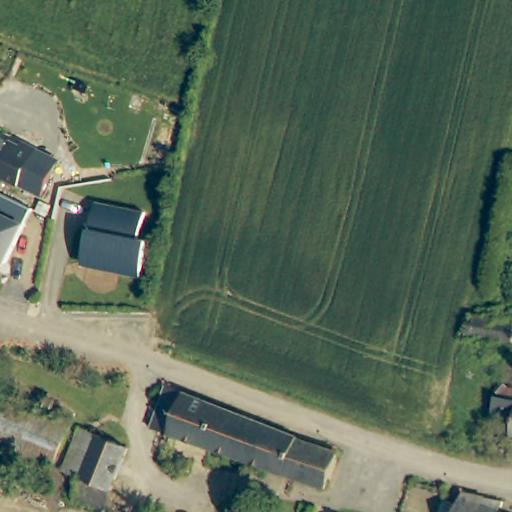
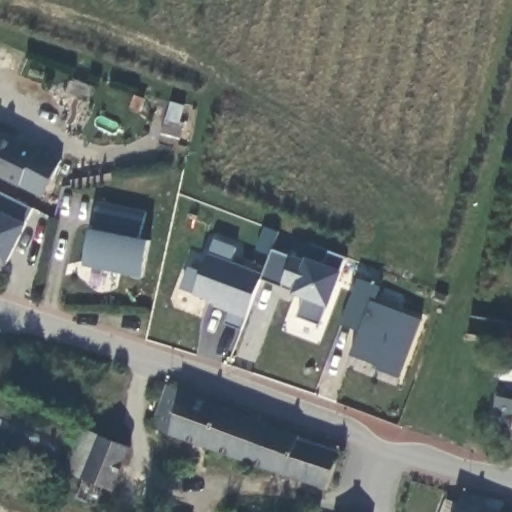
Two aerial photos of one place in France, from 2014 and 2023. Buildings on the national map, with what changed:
unchanged [(42,197),(0,178),(0,135),(0,134),(21,143),(24,139),(61,158),(42,197)]
unchanged [(34,208),(25,223),(3,265),(0,263),(0,193),(34,208)]
unchanged [(141,283),(87,271),(84,265),(97,207),(145,218),(139,244),(149,247),(141,283)]
new [(299,317),(305,299),(292,294),(294,290),(262,279),(246,317),(241,330),(224,323),(228,312),(213,306),(215,303),(180,289),(188,268),(202,273),(210,253),(215,240),(236,247),(231,261),(264,274),(273,250),(295,256),(306,258),(323,264),(330,252),(345,258),(343,272),(329,307),(319,324),(299,317)]
new [(381,287),(376,301),(422,321),(400,379),(378,370),(378,365),(351,355),(360,332),(341,325),(359,279),(381,287)]
unchanged [(512,319),(512,347),(470,341),(483,316),(512,319)]
unchanged [(177,400),(180,392),(355,460),(342,494),(165,431),(177,400)]
unchanged [(69,424),(49,472),(0,453),(0,396),(69,424)]
unchanged [(497,397),(512,400),(512,430),(491,425),(497,397)]
unchanged [(80,494),(87,477),(67,469),(84,428),(103,436),(134,448),(108,508),(79,496),(80,494)]
unchanged [(445,505),(447,501),(458,505),(461,497),(463,493),(485,498),(481,507),(479,512),(443,512),(445,505)]
unchanged [(481,507),(494,512),(479,512),(481,507)]

